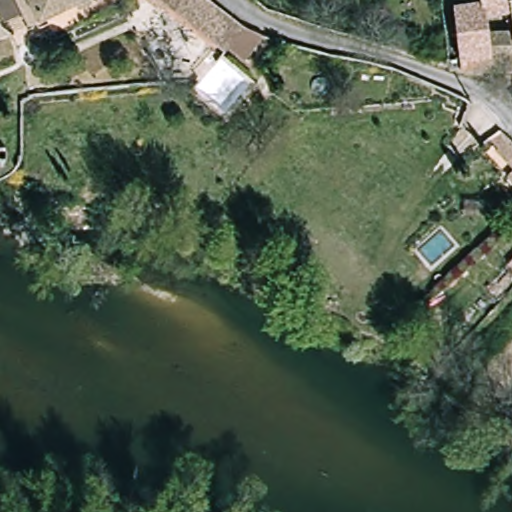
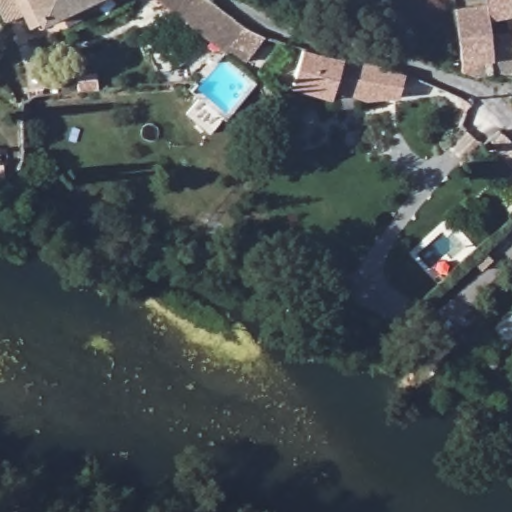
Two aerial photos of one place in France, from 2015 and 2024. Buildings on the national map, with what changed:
unchanged [(89,0),(31,29),(24,12),(11,18),(2,0),(89,0)]
unchanged [(234,46),(229,52),(227,54),(170,0),(216,0),(230,13),(251,29),(275,36),(251,61),(234,46)]
unchanged [(477,77),(468,70),(465,69),(458,9),(489,5),(488,0),(512,0),(512,19),(512,14),(493,17),(495,34),(512,32),(512,73),(501,74),(477,77)]
new [(291,87),(303,47),(322,54),(344,58),(405,73),(398,98),(364,100),(333,91),(331,99),(291,87)]
unchanged [(487,139),(500,130),(512,143),(512,169),(487,139)]
unchanged [(512,169),(512,185),(505,177),(512,169)]

